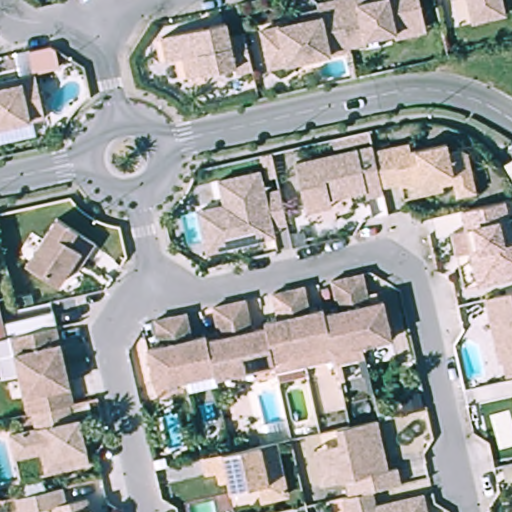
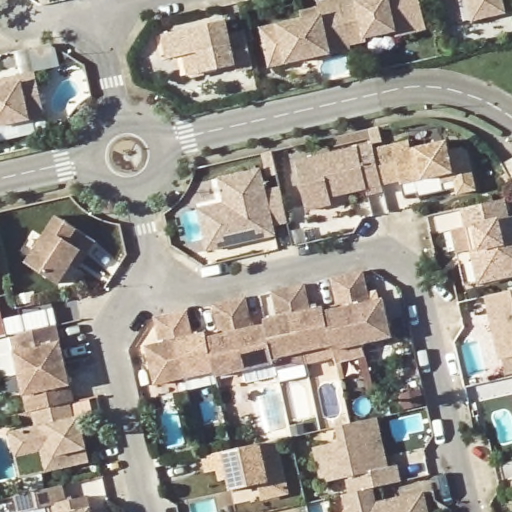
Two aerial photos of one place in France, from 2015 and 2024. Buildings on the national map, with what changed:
unchanged [(280,26),(303,22),(300,11),(318,9),(316,2),(325,0),(339,0),(349,47),(350,51),(287,63),(270,67),(262,31),(280,26)]
unchanged [(394,33),(365,39),(366,43),(349,47),(339,0),(419,0),(422,14),(426,31),(395,39),(394,33)]
unchanged [(508,0),(511,15),(489,20),(479,22),(474,0),(508,0)]
unchanged [(186,57),(170,61),(165,36),(228,23),(231,37),(248,34),(256,70),(238,74),(238,68),(206,74),(191,78),(186,57)]
unchanged [(0,132),(0,89),(38,81),(46,122),(0,132)]
unchanged [(405,187),(383,191),(381,181),(375,152),(411,145),(413,151),(451,143),(452,150),(464,147),(473,153),(480,192),(462,197),(459,182),(446,186),(445,181),(422,187),(406,190),(405,187)]
unchanged [(310,217),(308,207),(299,166),(374,149),(375,152),(381,181),(383,191),(385,199),(371,203),(368,194),(333,202),(335,212),(310,217)]
unchanged [(512,163),(512,173),(508,166),(512,163)]
unchanged [(276,227),(278,237),(240,246),(235,231),(211,236),(204,206),(225,202),(221,180),(264,170),(266,187),(281,184),(290,224),(276,227)]
unchanged [(460,232),(475,230),(471,211),(476,210),(512,202),(512,279),(487,284),(471,287),(460,232)]
unchanged [(61,283),(31,263),(61,219),(99,244),(90,257),(81,271),(73,266),(61,283)]
unchanged [(375,303),(387,301),(395,338),(366,345),(351,277),(368,272),(375,303)]
unchanged [(366,345),(369,358),(339,365),(338,359),(336,351),(335,347),(328,314),(343,310),(336,280),(351,277),(366,345)]
unchanged [(314,312),(326,309),(328,314),(335,347),(336,351),(338,359),(309,365),(306,352),(293,289),(304,287),(309,286),(314,312)]
unchanged [(283,318),(278,292),(293,289),(306,352),(309,365),(279,372),(277,365),(276,359),(269,326),(268,322),(283,318)]
unchanged [(496,332),(492,316),(488,298),(512,293),(512,361),(503,363),(496,332)]
unchanged [(0,301),(0,294),(1,301),(0,301)]
unchanged [(255,330),(269,326),(276,359),(277,365),(246,371),(231,303),(248,299),(255,330)]
unchanged [(0,340),(0,301),(1,301),(10,337),(0,340)]
unchanged [(223,337),(216,306),(231,303),(246,371),(218,377),(218,373),(211,340),(223,337)]
unchanged [(194,339),(210,335),(211,340),(218,373),(188,380),(174,316),(189,312),(194,339)]
unchanged [(159,386),(151,347),(163,346),(158,319),(174,316),(188,380),(159,386)]
unchanged [(21,374),(13,337),(30,333),(59,327),(67,364),(21,374)]
unchanged [(75,402),(70,404),(31,412),(21,374),(67,364),(75,402)]
unchanged [(10,433),(21,431),(35,428),(31,412),(70,404),(73,420),(80,418),(90,462),(46,472),(41,453),(28,457),(16,458),(10,433)]
unchanged [(319,450),(336,447),(346,445),(343,428),(367,423),(381,420),(393,471),(402,468),(405,483),(378,490),(356,495),(351,480),(344,482),(326,487),(319,450)]
unchanged [(278,442),(290,497),(265,503),(261,488),(271,486),(263,445),(278,442)]
unchanged [(219,473),(208,476),(204,458),(263,445),(271,486),(261,488),(235,494),(231,482),(221,484),(219,473)]
unchanged [(52,508),(33,512),(18,512),(15,497),(61,486),(65,502),(88,497),(92,512),(53,512),(52,508)]
unchanged [(349,497),(356,495),(378,490),(381,507),(431,497),(434,512),(352,512),(349,497)]

